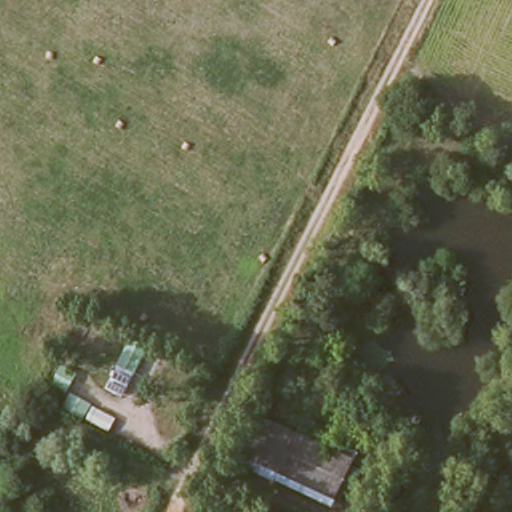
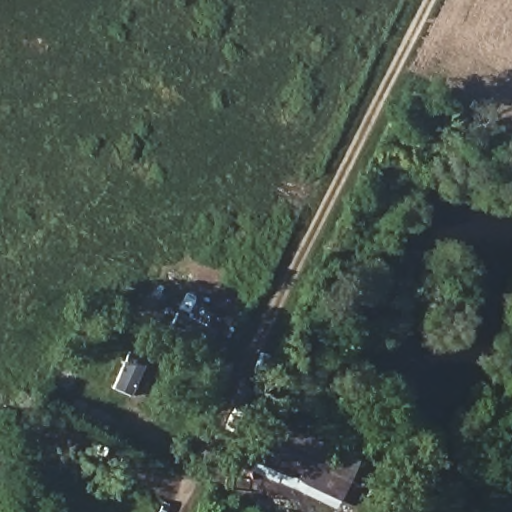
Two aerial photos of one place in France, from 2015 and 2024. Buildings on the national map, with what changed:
unchanged [(123,400),(100,388),(126,331),(151,345),(123,400)]
unchanged [(342,495),(260,466),(274,426),(356,455),(342,495)]
unchanged [(0,451),(0,433),(1,433),(9,438),(6,440),(0,451)]

